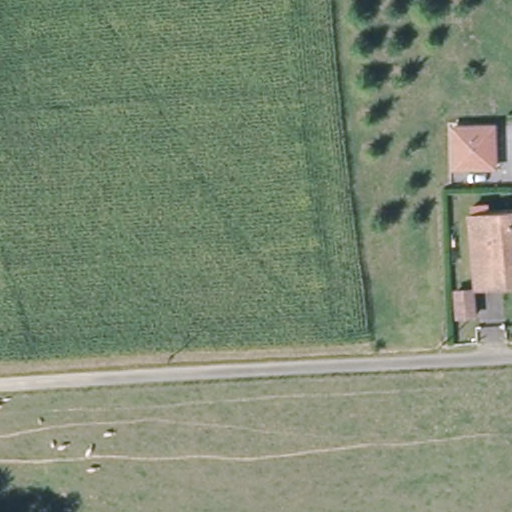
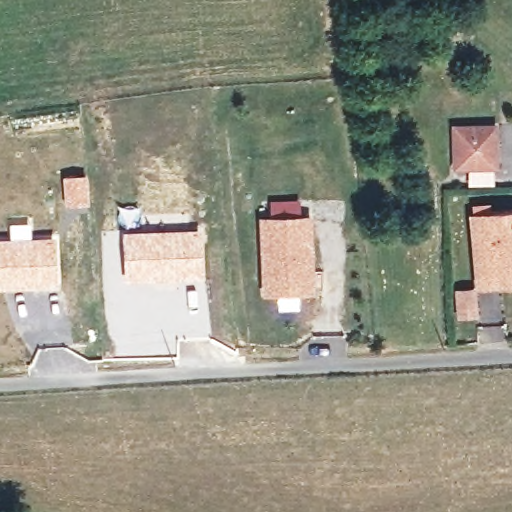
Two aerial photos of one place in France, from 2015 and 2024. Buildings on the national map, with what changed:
unchanged [(452,132),(492,130),(492,149),(493,170),(454,173),(453,151),(452,132)]
new [(85,174),(87,204),(63,204),(61,176),(85,174)]
unchanged [(506,285),(481,285),(474,211),(512,209),(512,284),(506,285)]
new [(311,215),(314,294),(263,297),(258,217),(311,215)]
new [(8,223),(30,223),(30,238),(54,237),(57,286),(0,289),(0,239),(8,239),(8,223)]
new [(200,228),(204,279),(123,282),(119,231),(200,228)]

